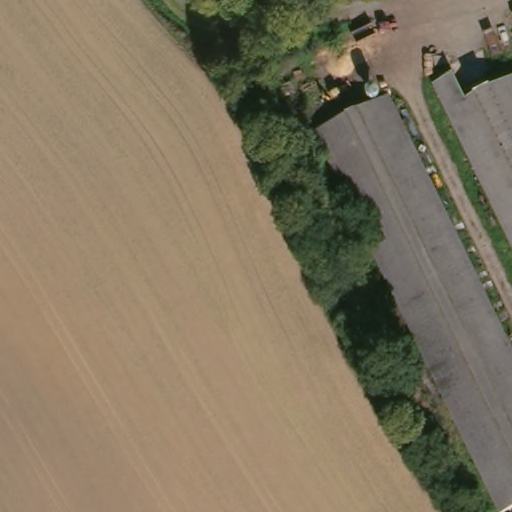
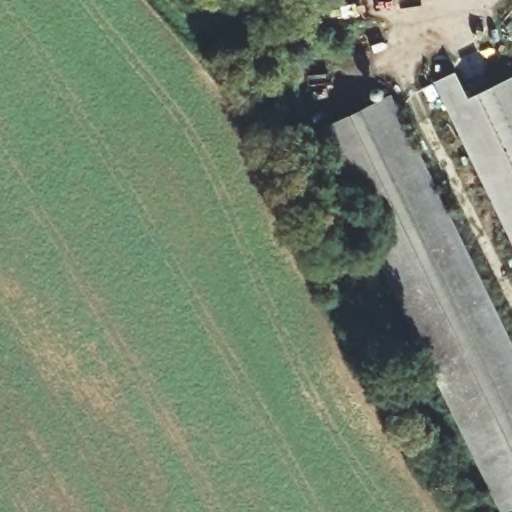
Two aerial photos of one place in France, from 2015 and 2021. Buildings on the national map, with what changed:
unchanged [(453,83),(461,100),(512,76),(512,251),(435,91),(453,83)]
unchanged [(315,132),(390,96),(512,348),(512,510),(508,512),(499,512),(315,132)]

